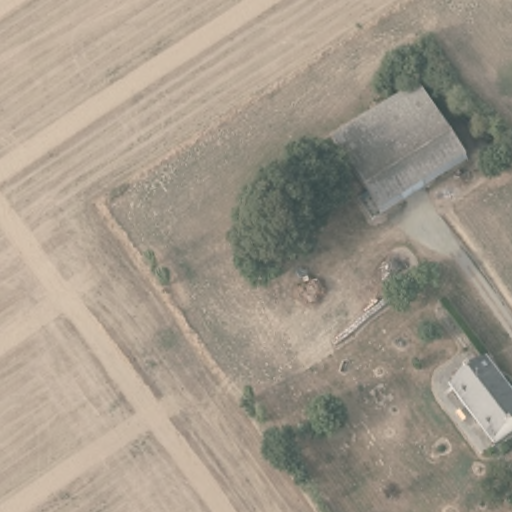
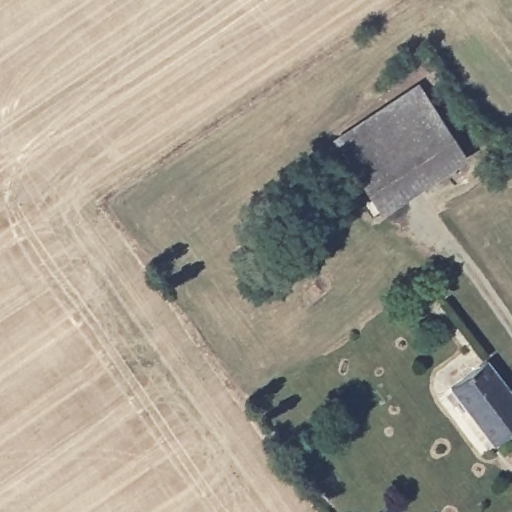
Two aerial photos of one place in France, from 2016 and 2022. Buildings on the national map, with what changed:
unchanged [(423,84),(468,157),(381,211),(335,139),(423,84)]
unchanged [(512,387),(512,429),(494,443),(453,384),(490,357),(512,387)]

